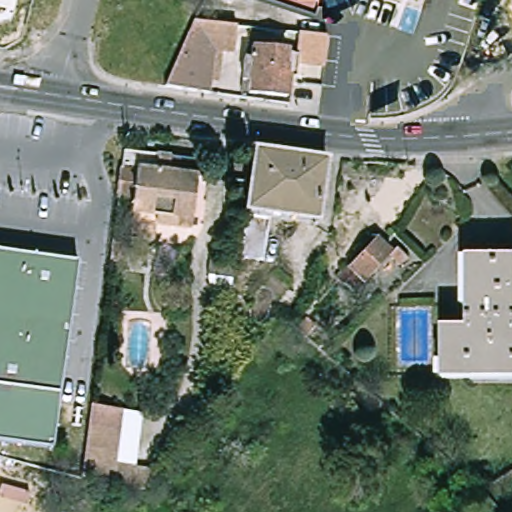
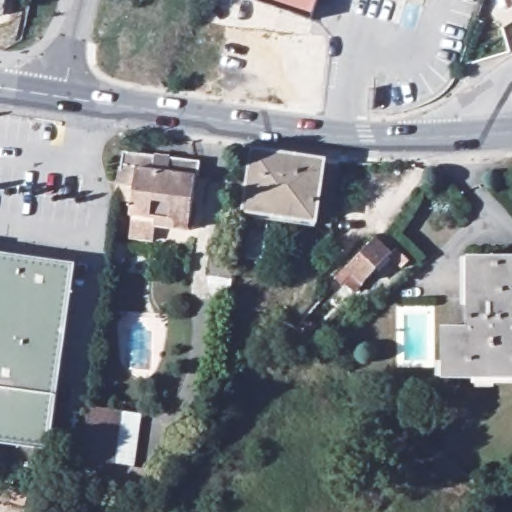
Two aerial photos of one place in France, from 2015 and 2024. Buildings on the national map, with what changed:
unchanged [(4,18),(2,17),(2,16),(0,15),(0,0),(9,0),(5,15),(4,18)]
unchanged [(259,0),(317,0),(311,18),(259,0)]
unchanged [(511,0),(512,0),(512,1),(511,0)]
demolished [(197,24),(237,28),(235,55),(217,52),(212,95),(167,90),(197,24)]
demolished [(325,37),(322,65),(292,62),(290,76),(287,76),(283,97),(243,91),(247,60),(252,60),(255,47),(292,52),(295,35),(325,37)]
unchanged [(153,228),(155,220),(131,217),(133,204),(117,201),(124,147),(153,151),(152,166),(166,168),(168,154),(196,157),(187,225),(186,232),(153,228)]
unchanged [(318,221),(271,214),(265,259),(245,257),(258,150),(327,159),(318,221)]
unchanged [(342,276),(375,243),(392,260),(358,293),(342,276)]
unchanged [(0,252),(13,254),(19,254),(78,262),(52,450),(0,443),(0,252)]
unchanged [(408,267),(403,272),(392,260),(396,255),(408,267)]
unchanged [(450,380),(449,329),(474,328),(474,256),(512,256),(512,380),(450,380)]
unchanged [(214,276),(217,260),(242,263),(240,280),(214,276)]
unchanged [(117,463),(152,468),(150,495),(80,487),(92,404),(123,409),(117,463)]

